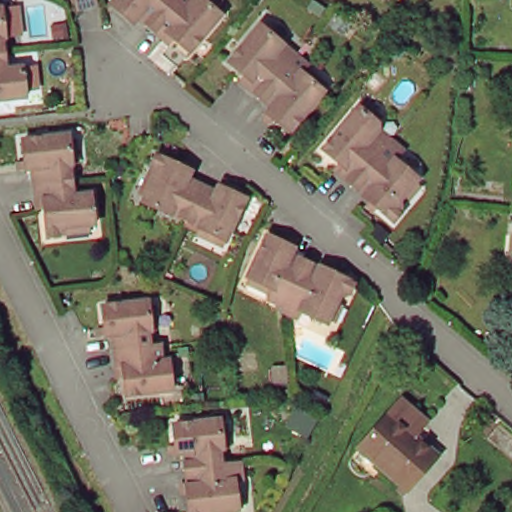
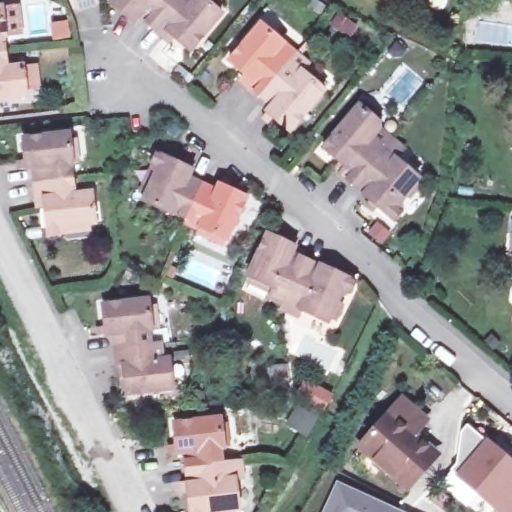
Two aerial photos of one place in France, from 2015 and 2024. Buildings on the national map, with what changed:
unchanged [(112,2),(114,0),(173,0),(152,25),(139,15),(130,17),(112,2)]
unchanged [(152,25),(173,0),(209,0),(223,11),(192,49),(176,36),(172,42),(166,36),(152,25)]
unchanged [(480,0),(479,1),(474,0),(480,0)]
unchanged [(0,10),(6,9),(8,33),(3,33),(0,34),(2,49),(0,50),(0,3),(0,10)]
unchanged [(242,72),(226,58),(258,20),(293,50),(256,93),(243,83),(238,77),(242,72)]
unchanged [(28,86),(23,87),(23,94),(0,96),(0,50),(2,49),(3,65),(20,64),(25,63),(28,86)]
unchanged [(259,115),(264,110),(264,109),(269,103),(256,93),(293,50),(306,61),(304,63),(320,77),(316,82),(322,87),(287,129),(270,115),(266,120),(259,115)]
unchanged [(338,164),(321,150),(358,107),(361,103),(381,119),(377,123),(378,123),(378,131),(389,141),(351,187),(339,176),(339,175),(334,170),(338,164)]
unchanged [(16,159),(23,159),(21,136),(68,131),(68,138),(74,137),(77,161),(71,161),(69,162),(70,177),(33,181),(32,166),(24,167),(18,167),(16,159)]
unchanged [(366,207),(369,203),(363,198),(364,197),(351,187),(389,141),(403,151),(394,161),(418,180),(415,184),(419,187),(408,200),(404,197),(399,203),(401,215),(393,223),(376,209),(373,213),(366,207)]
unchanged [(174,214),(173,217),(144,204),(146,198),(141,196),(154,169),(153,166),(158,156),(185,168),(188,162),(196,166),(193,172),(189,180),(203,187),(188,220),(174,214)]
unchanged [(60,231),(58,234),(46,235),(43,206),(36,207),(35,198),(33,181),(70,177),(73,192),(91,190),(94,222),(88,222),(89,228),(60,231)]
unchanged [(199,235),(201,230),(201,229),(202,227),(188,220),(203,187),(218,193),(221,187),(224,181),(231,184),(228,190),(248,200),(229,242),(223,239),(221,244),(199,235)]
unchanged [(264,298),(269,288),(243,276),(263,233),(283,243),(286,236),(293,240),(289,246),(291,247),(288,253),(301,260),(279,305),(264,298)]
unchanged [(330,321),(324,319),(323,323),(296,310),(293,317),(277,309),(279,305),(301,260),(314,266),(317,260),(326,265),(324,269),(351,282),(346,292),(336,296),(333,302),(338,304),(330,321)]
unchanged [(93,326),(100,325),(98,303),(144,298),(146,305),(151,304),(153,328),(148,328),(144,329),(146,344),(110,348),(108,333),(101,333),(94,334),(93,326)]
unchanged [(112,365),(110,348),(146,344),(156,343),(158,359),(164,358),(168,388),(121,393),(119,375),(113,376),(112,365)]
new [(284,423),(295,401),(306,378),(334,394),(321,415),(308,436),(284,423)]
unchanged [(346,454),(381,409),(395,421),(414,398),(440,419),(422,441),(438,458),(409,497),(346,454)]
unchanged [(166,446),(173,445),(170,423),(216,417),(218,423),(223,422),(226,446),(221,447),(217,448),(218,463),(219,463),(183,468),(181,452),(174,453),(173,453),(166,453),(166,446)]
new [(512,509),(509,512),(501,512),(459,474),(489,441),(512,462),(512,509)]
unchanged [(214,511),(206,512),(187,512),(185,492),(180,493),(179,483),(185,482),(183,468),(219,463),(218,463),(238,460),(238,461),(240,477),(233,478),(236,508),(231,509),(232,512),(214,512),(214,511)]
new [(336,479),(407,512),(319,512),(336,479)]

